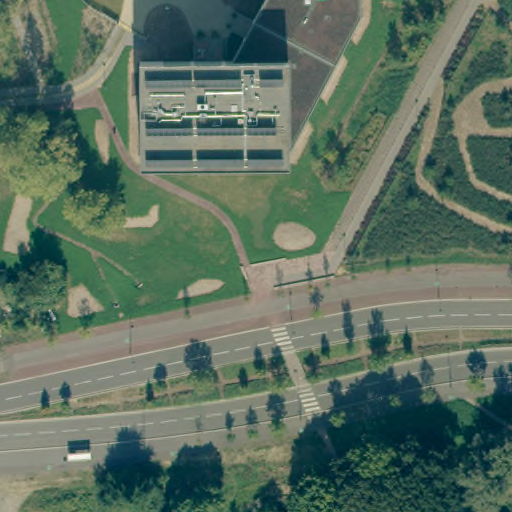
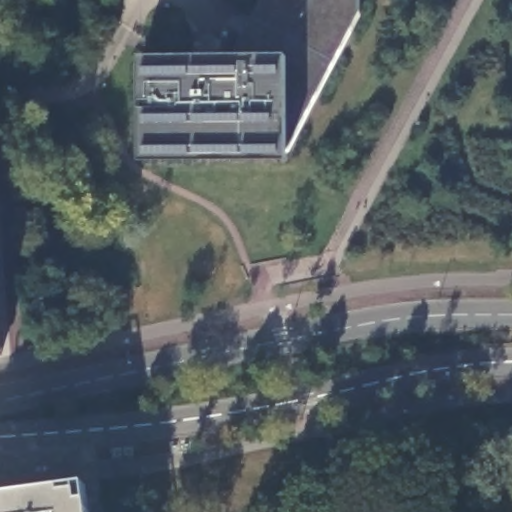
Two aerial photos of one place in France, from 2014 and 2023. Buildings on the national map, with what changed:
unchanged [(235,62),(265,0),(366,0),(363,11),(287,152),(286,166),(141,166),(140,62),(235,62)]
new [(0,512),(0,497),(86,486),(90,512),(0,512)]

